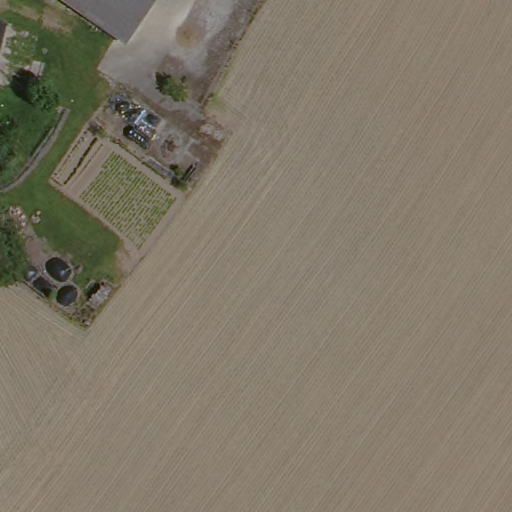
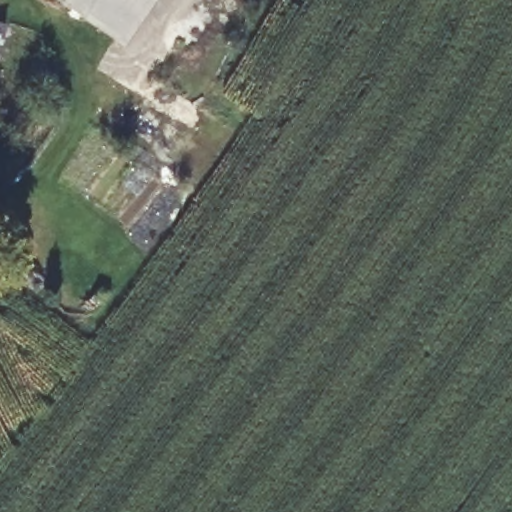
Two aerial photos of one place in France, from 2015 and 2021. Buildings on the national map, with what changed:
unchanged [(35,0),(146,0),(122,47),(35,0)]

